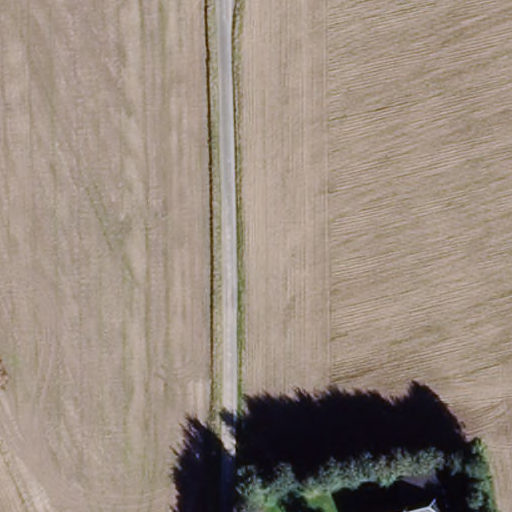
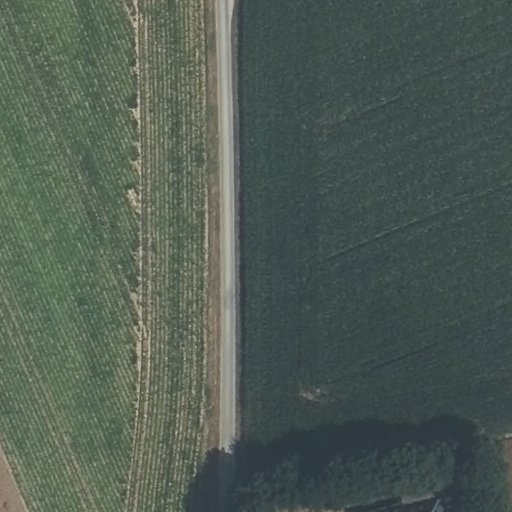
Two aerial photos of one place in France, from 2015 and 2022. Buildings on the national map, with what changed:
unchanged [(441,512),(373,512),(436,495),(441,512)]

